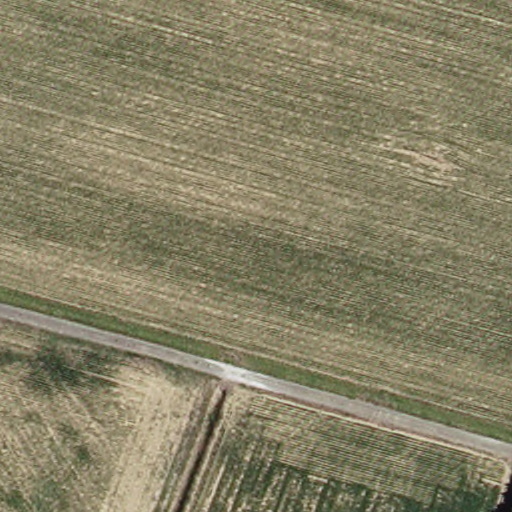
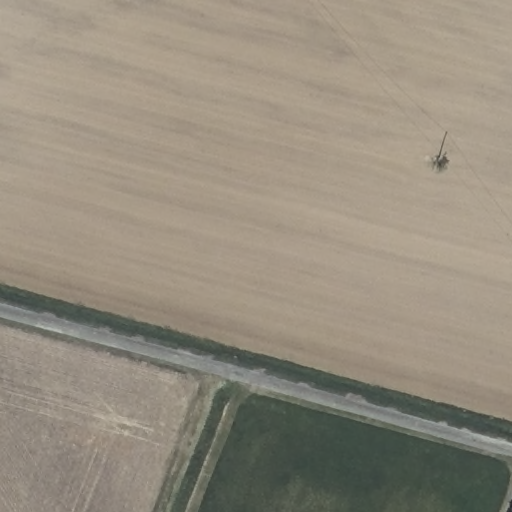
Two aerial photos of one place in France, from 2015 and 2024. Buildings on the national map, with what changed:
[]

